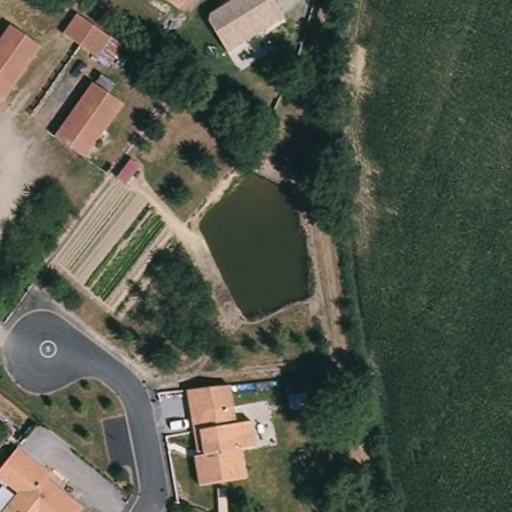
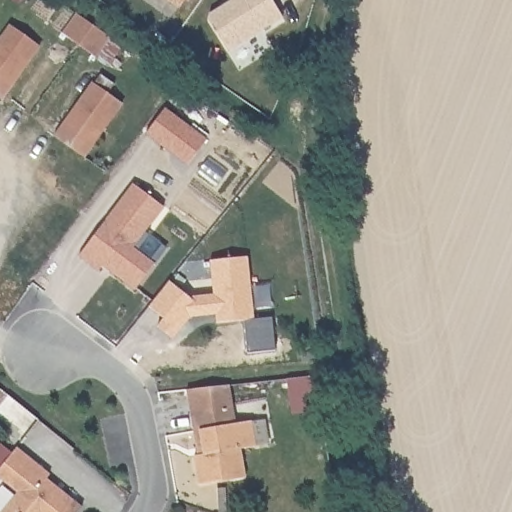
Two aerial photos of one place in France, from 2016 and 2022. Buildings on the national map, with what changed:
unchanged [(180,10),(166,0),(187,0),(180,10)]
unchanged [(230,0),(272,0),(283,20),(225,51),(206,17),(231,2),(230,0)]
unchanged [(73,15),(90,26),(104,36),(107,38),(93,58),(76,46),(59,35),(73,15)]
unchanged [(35,46),(8,87),(0,100),(0,34),(5,26),(35,46)]
unchanged [(101,57),(112,41),(125,49),(114,66),(101,57)]
unchanged [(86,79),(116,99),(89,140),(79,154),(49,133),(59,119),(86,79)]
new [(206,138),(187,164),(145,133),(165,107),(206,138)]
new [(131,183),(163,206),(132,246),(154,262),(133,289),(102,264),(98,269),(79,255),(131,183)]
new [(152,306),(172,280),(192,295),(217,292),(212,258),(250,253),(257,315),(222,320),(220,320),(219,312),(194,315),(177,337),(161,325),(167,317),(152,306)]
unchanged [(185,389),(229,385),(231,406),(233,423),(249,421),(253,447),(238,449),(243,478),(196,485),(191,455),(195,454),(192,431),(189,412),(185,389)]
unchanged [(300,394),(303,408),(290,410),(288,396),(300,394)]
unchanged [(0,486),(0,464),(11,450),(44,477),(41,481),(77,510),(76,512),(0,512),(0,511),(12,495),(0,486)]

